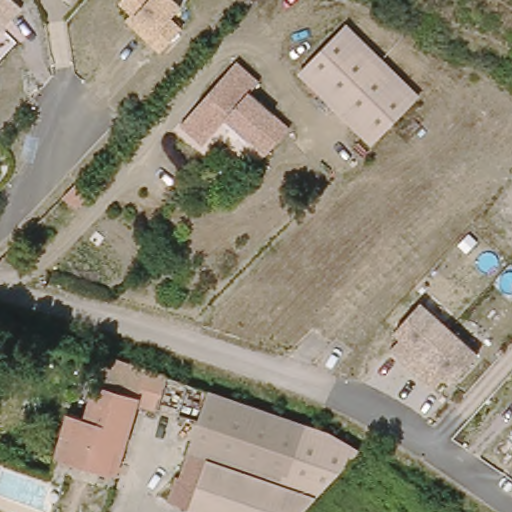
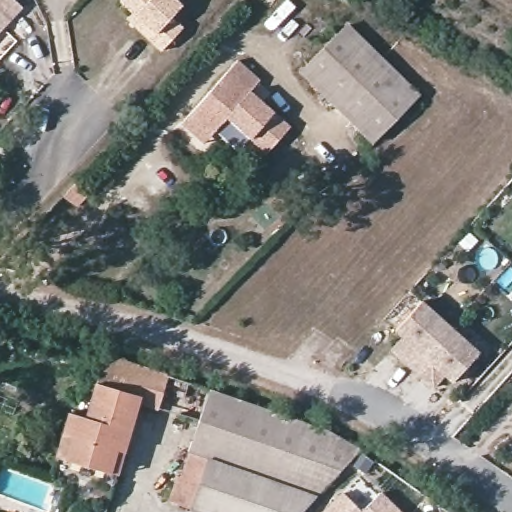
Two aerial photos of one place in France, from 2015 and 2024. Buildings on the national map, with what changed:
unchanged [(24,8),(0,33),(0,0),(15,0),(24,8)]
unchanged [(115,4),(118,0),(171,0),(181,9),(175,16),(187,29),(161,56),(126,22),(129,17),(115,4)]
unchanged [(345,24),(418,92),(373,139),(300,71),(345,24)]
unchanged [(258,83),(254,90),(228,118),(202,146),(177,124),(234,63),(258,83)]
unchanged [(254,90),(294,125),(267,152),(228,118),(254,90)]
unchanged [(53,206),(68,189),(83,202),(67,219),(53,206)]
unchanged [(400,342),(391,333),(420,301),(479,355),(451,385),(445,377),(434,389),(389,352),(400,342)]
unchanged [(62,413),(82,419),(94,383),(103,353),(130,362),(169,374),(162,403),(135,395),(110,477),(103,475),(68,464),(50,459),(56,436),(62,413)]
unchanged [(285,479),(190,447),(201,416),(211,390),(227,396),(303,422),(285,479)]
unchanged [(349,438),(360,449),(318,490),(285,479),(303,422),(349,438)]
unchanged [(221,512),(174,496),(190,447),(285,479),(318,490),(295,512),(221,512)]
new [(401,512),(361,512),(381,491),(401,512)]
new [(361,512),(322,512),(342,492),(361,512)]

